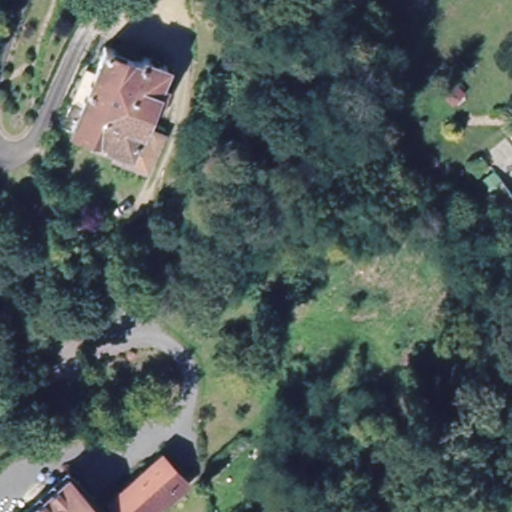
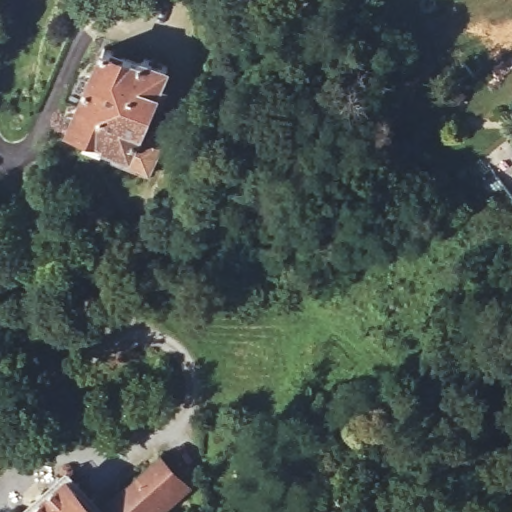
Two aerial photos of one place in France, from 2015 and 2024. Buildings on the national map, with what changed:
unchanged [(145,66),(147,60),(172,71),(147,127),(169,137),(151,176),(116,160),(120,151),(105,144),(106,141),(72,127),(76,119),(66,115),(72,102),(66,99),(81,65),(85,67),(86,64),(100,70),(109,50),(145,66)]
unchanged [(155,509),(157,512),(114,512),(108,504),(160,458),(180,481),(154,503),(157,507),(155,509)]
unchanged [(90,512),(22,512),(61,478),(90,512)]

